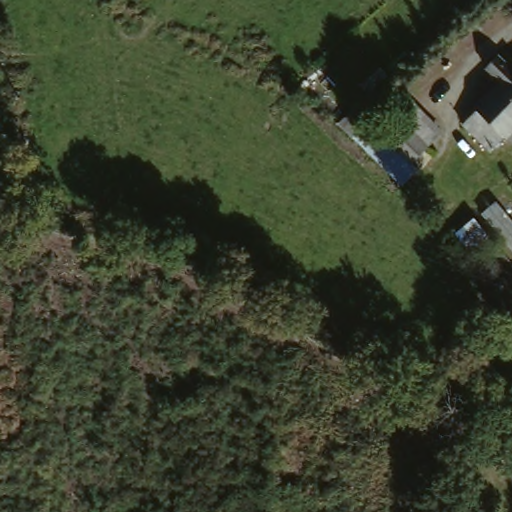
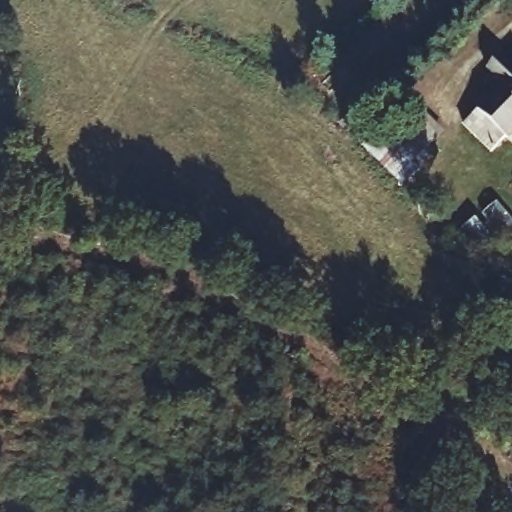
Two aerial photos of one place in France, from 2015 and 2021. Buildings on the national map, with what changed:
unchanged [(504,84),(489,72),(498,61),(512,73),(512,137),(508,141),(478,115),(504,84)]
unchanged [(429,149),(433,153),(400,188),(352,141),(377,114),(393,127),(413,104),(440,137),(429,149)]
unchanged [(512,222),(512,249),(487,224),(502,211),(512,222)]

